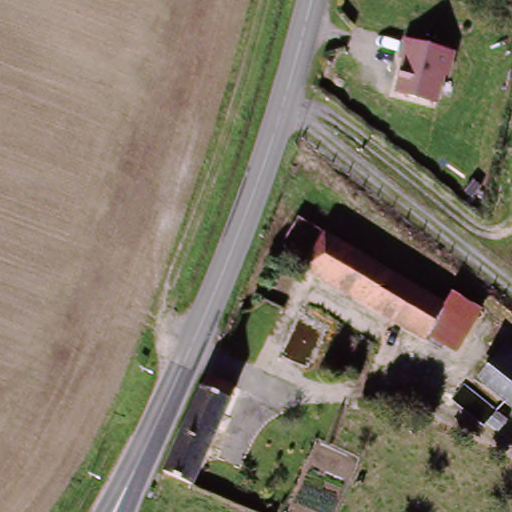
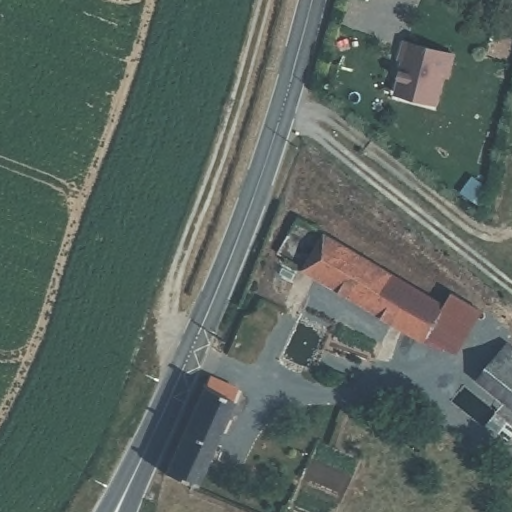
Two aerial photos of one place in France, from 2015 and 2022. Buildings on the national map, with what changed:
unchanged [(404,56),(408,39),(457,51),(451,73),(447,72),(440,102),(400,90),(409,57),(404,56)]
unchanged [(284,260),(305,225),(440,310),(446,301),(475,317),(445,363),(284,260)]
unchanged [(506,364),(512,356),(512,426),(477,399),(506,364)]
unchanged [(203,377),(231,390),(190,488),(162,477),(203,377)]

